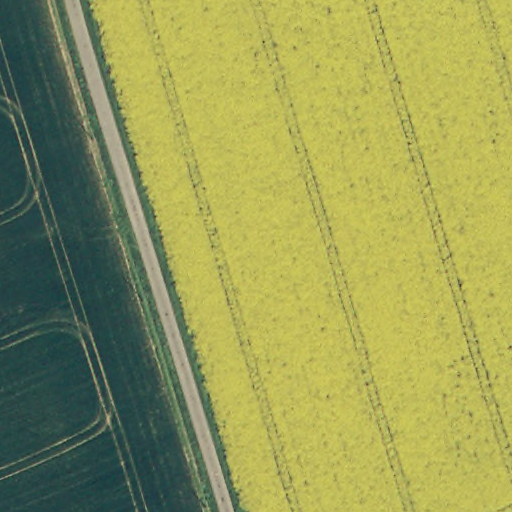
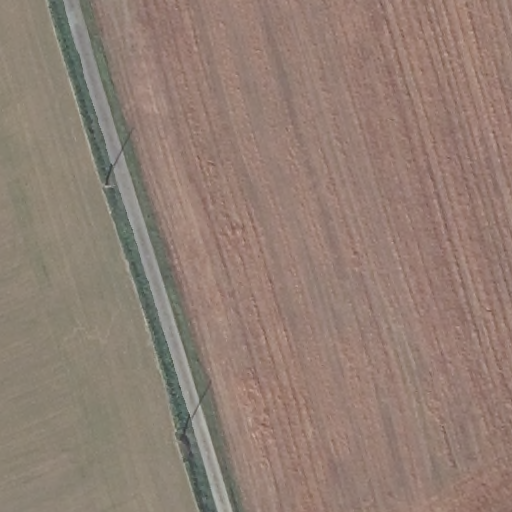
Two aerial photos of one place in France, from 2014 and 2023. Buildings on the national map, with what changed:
[]

